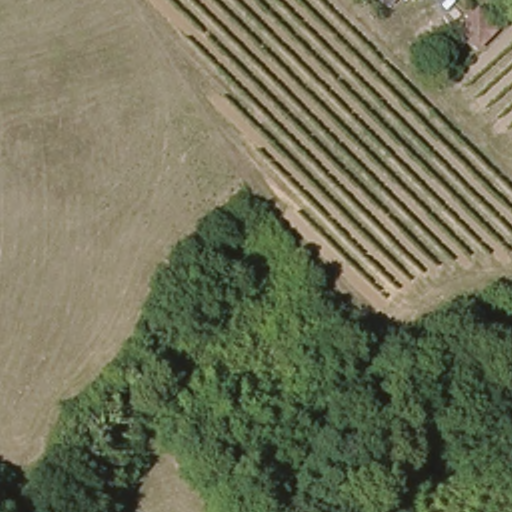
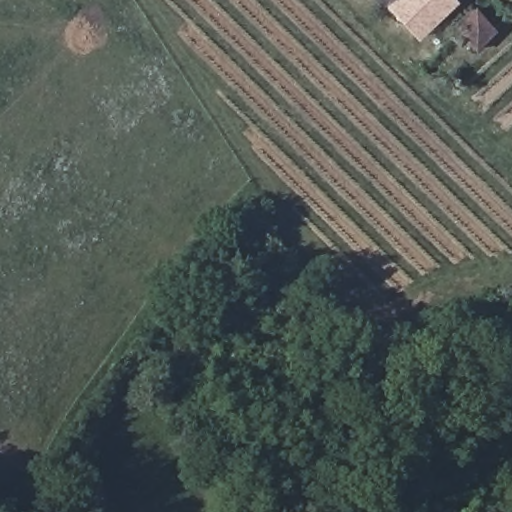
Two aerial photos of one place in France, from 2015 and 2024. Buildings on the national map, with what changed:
new [(457,1),(417,41),(377,0),(456,0),(457,1)]
unchanged [(498,20),(481,40),(472,32),(465,37),(459,30),(465,25),(461,19),(480,1),(498,20)]

